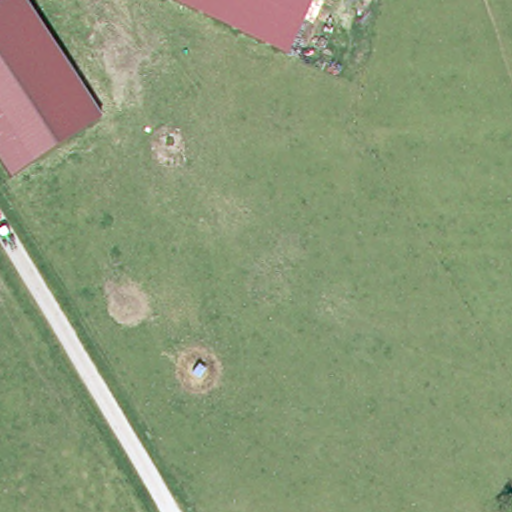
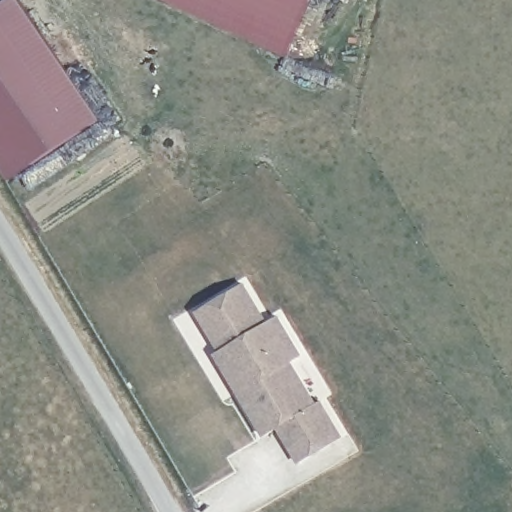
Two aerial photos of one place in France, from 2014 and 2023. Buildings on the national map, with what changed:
unchanged [(10,179),(0,164),(0,5),(7,0),(20,0),(100,120),(10,179)]
unchanged [(168,0),(316,0),(287,55),(168,0)]
new [(270,320),(280,314),(302,355),(292,361),(317,402),(321,400),(343,437),(297,466),(277,428),(262,437),(215,354),(218,351),(195,312),(245,282),(270,320)]

